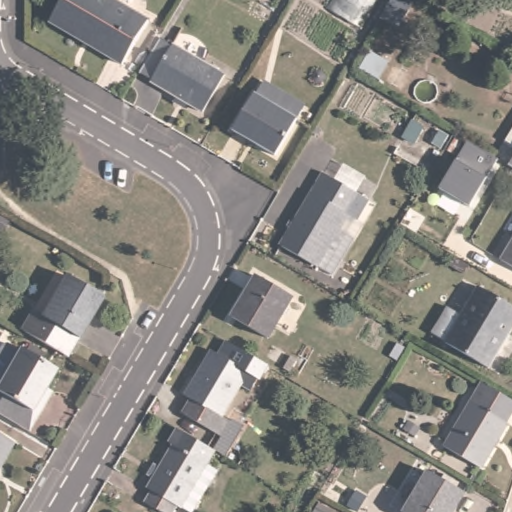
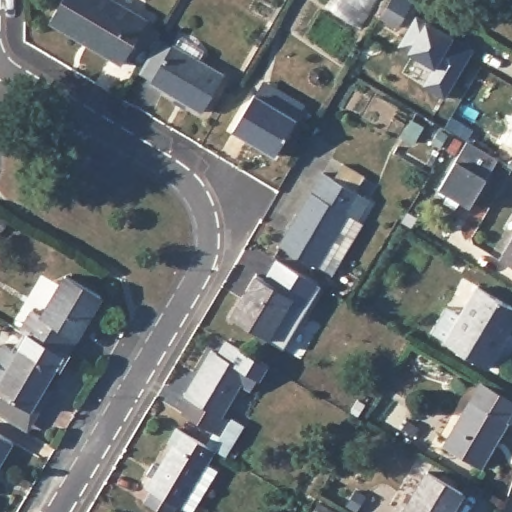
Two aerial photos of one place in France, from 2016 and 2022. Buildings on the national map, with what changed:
unchanged [(123,62),(50,19),(63,0),(114,0),(148,21),(123,62)]
unchanged [(401,30),(376,17),(386,0),(418,0),(415,4),(401,30)]
new [(430,65),(405,52),(424,20),(453,37),(473,49),(444,97),(422,85),(430,65)]
unchanged [(205,111),(158,80),(143,71),(163,38),(177,46),(227,76),(205,111)]
unchanged [(278,153),(233,127),(255,90),(299,117),(278,153)]
unchanged [(485,177),(472,204),(442,188),(457,160),(468,142),(499,158),(485,177)]
unchanged [(354,212),(345,208),(313,261),(276,240),(321,167),(363,194),(354,212)]
unchanged [(512,229),(512,254),(501,247),(512,229)]
unchanged [(58,268),(69,275),(106,298),(70,356),(22,327),(33,309),(58,268)]
unchanged [(265,333),(231,312),(254,271),(289,292),(265,333)]
unchanged [(512,338),(496,365),(452,341),(455,336),(442,328),(457,300),(471,308),(482,289),(512,308),(512,338)]
unchanged [(0,387),(0,386),(24,344),(60,366),(44,392),(50,396),(42,411),(31,429),(8,415),(0,410),(0,403),(7,391),(0,387)]
unchanged [(210,363),(218,350),(260,375),(256,381),(253,379),(241,399),(230,393),(212,422),(220,428),(211,441),(174,419),(183,404),(177,401),(203,358),(210,363)]
unchanged [(509,424),(482,467),(447,446),(484,382),(512,399),(512,402),(503,419),(509,424)]
unchanged [(187,509),(174,501),(168,512),(160,512),(139,498),(146,487),(142,482),(167,441),(162,436),(170,423),(208,446),(199,460),(211,468),(187,509)]
unchanged [(11,437),(0,456),(0,431),(11,437)]
unchanged [(447,512),(408,512),(402,508),(426,468),(460,490),(447,512)]

